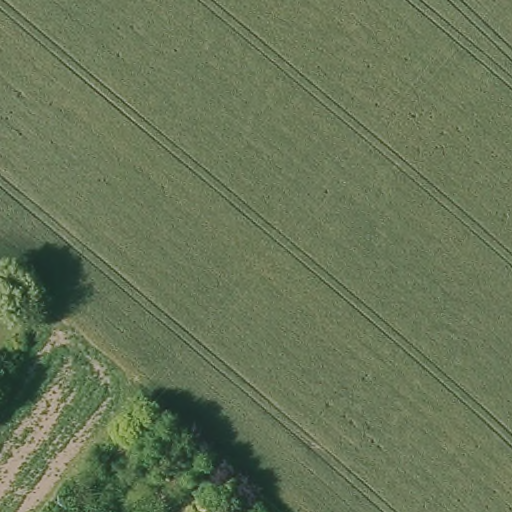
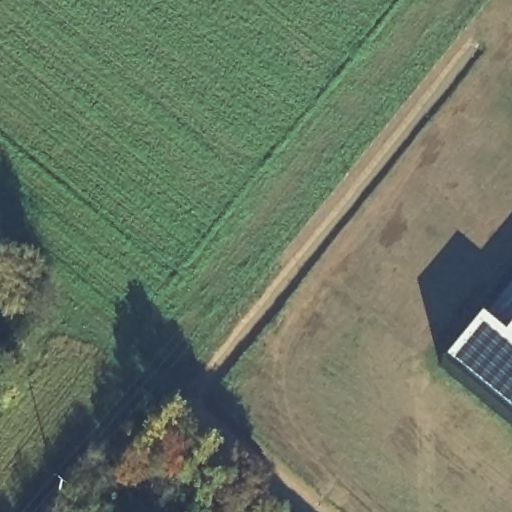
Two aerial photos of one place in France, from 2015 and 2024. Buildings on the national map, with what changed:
new [(480,320),(503,339),(512,328),(512,426),(441,367),(480,320)]

